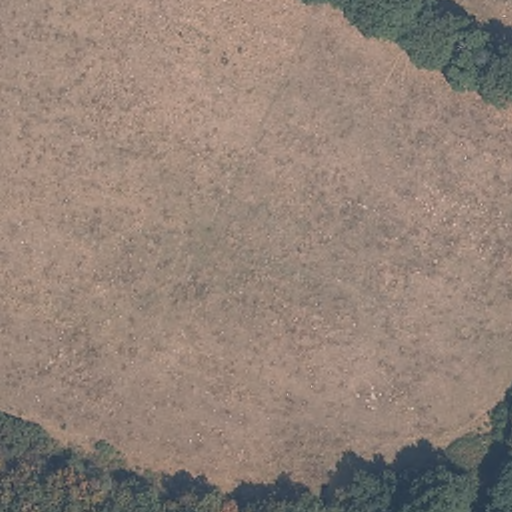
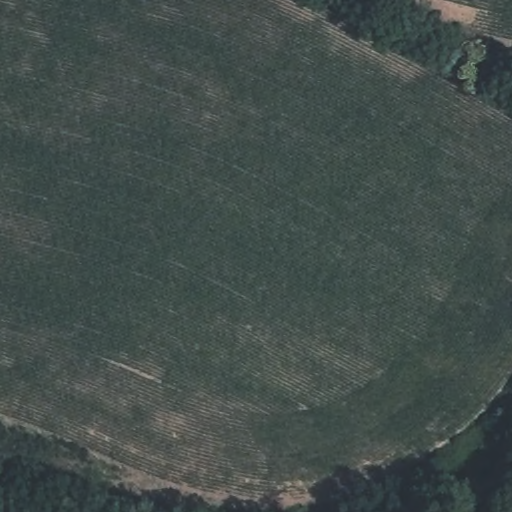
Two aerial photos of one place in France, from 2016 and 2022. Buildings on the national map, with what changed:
[]

